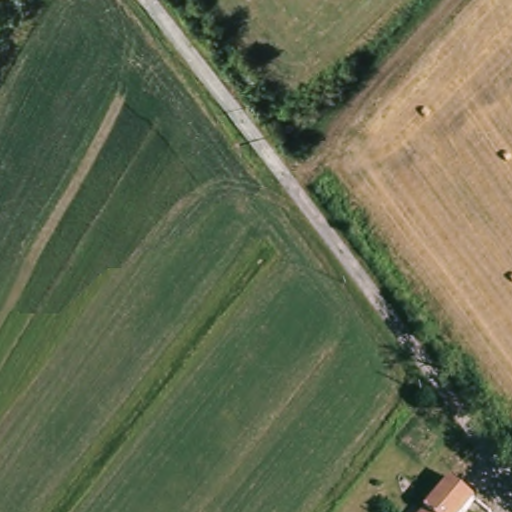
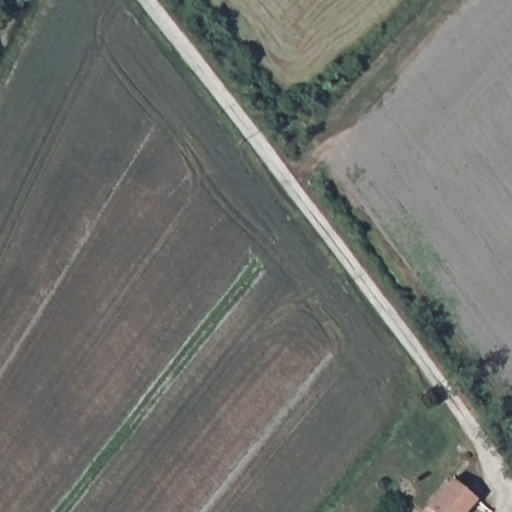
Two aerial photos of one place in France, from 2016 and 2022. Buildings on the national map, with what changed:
unchanged [(451,487),(453,485),(475,504),(468,512),(429,512),(451,487)]

